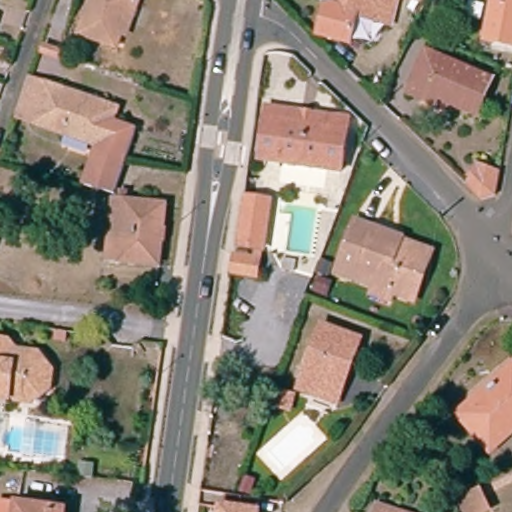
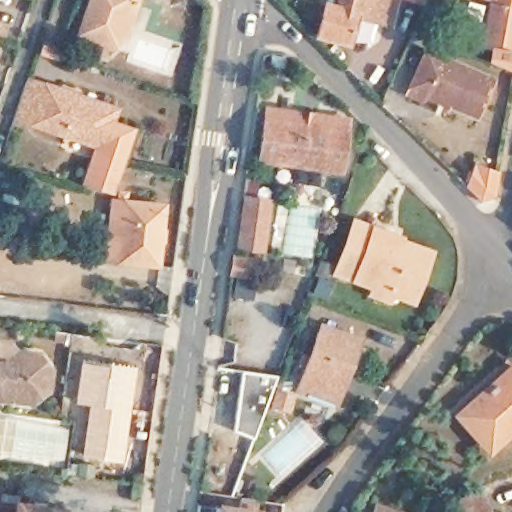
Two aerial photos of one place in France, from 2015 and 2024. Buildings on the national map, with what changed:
unchanged [(78,34),(90,0),(136,0),(119,49),(78,34)]
unchanged [(355,15),(347,44),(318,38),(325,7),(337,10),(340,0),(393,0),(387,23),(355,15)]
unchanged [(482,41),(490,0),(512,0),(512,47),(482,41)]
unchanged [(406,95),(418,69),(425,53),(490,81),(475,117),(447,105),(444,111),(406,95)]
unchanged [(12,123),(25,84),(45,90),(115,114),(110,128),(120,130),(134,135),(122,170),(112,199),(80,190),(85,175),(92,150),(31,129),(12,123)]
unchanged [(256,161),(262,119),(264,106),(346,119),(345,130),(340,172),(256,161)]
unchanged [(473,164),(499,173),(495,198),(480,203),(463,187),(473,164)]
unchanged [(262,252),(235,248),(242,198),(268,201),(262,252)]
unchanged [(158,271),(105,265),(110,206),(164,210),(158,271)]
unchanged [(368,297),(371,287),(333,272),(351,224),(370,229),(371,225),(403,237),(400,245),(429,255),(412,303),(392,295),(389,304),(368,297)]
unchanged [(252,259),(254,255),(258,257),(255,279),(229,274),(231,255),(252,259)]
unchanged [(335,406),(295,391),(319,327),(359,340),(335,406)]
unchanged [(14,350),(13,357),(25,358),(25,353),(37,354),(50,369),(47,389),(30,403),(12,401),(6,392),(0,391),(0,339),(9,340),(14,350)]
new [(80,359),(107,362),(102,407),(108,408),(101,461),(80,458),(86,405),(74,404),(80,359)]
new [(108,408),(102,407),(107,362),(137,365),(124,464),(101,461),(108,408)]
new [(258,438),(231,432),(245,369),(272,376),(258,438)]
unchanged [(483,459),(450,419),(486,387),(508,369),(511,373),(512,374),(512,434),(483,459)]
unchanged [(449,502),(475,489),(487,512),(454,512),(449,502)]
unchanged [(15,505),(57,511),(63,512),(14,512),(15,505)]
unchanged [(375,507),(389,512),(373,512),(375,507)]
unchanged [(219,509),(245,512),(218,512),(219,509)]

